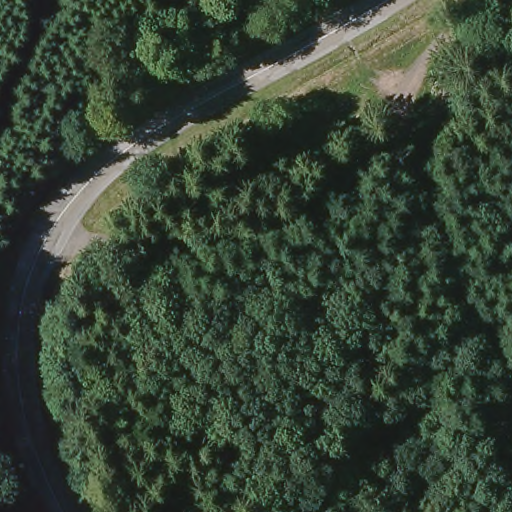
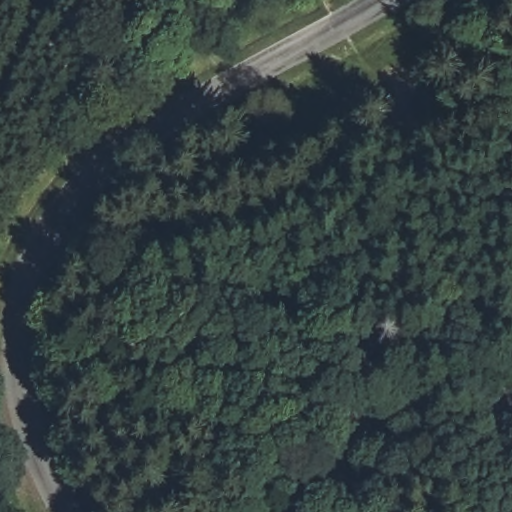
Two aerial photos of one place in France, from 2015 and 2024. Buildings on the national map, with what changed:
unchanged [(470,400),(507,385),(512,397),(512,431),(482,441),(470,400)]

